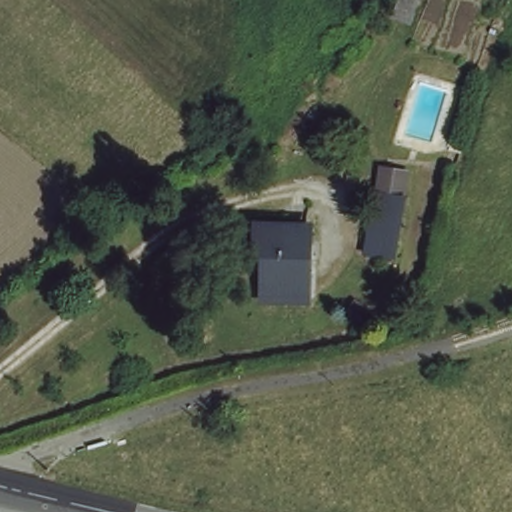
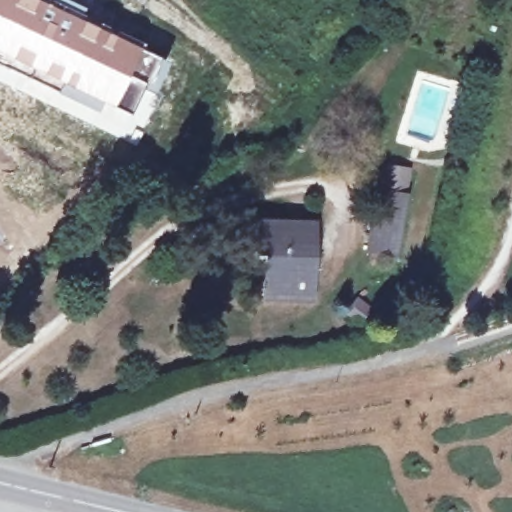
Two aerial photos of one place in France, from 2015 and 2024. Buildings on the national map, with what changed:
new [(61,0),(82,9),(79,16),(167,61),(152,95),(141,90),(130,114),(65,89),(62,94),(0,65),(0,0),(61,0)]
unchanged [(387,11),(392,0),(417,0),(410,20),(387,11)]
unchanged [(369,244),(377,190),(381,169),(411,173),(407,195),(398,250),(369,244)]
unchanged [(258,250),(260,222),(313,223),(311,295),(267,295),(268,250),(258,250)]

